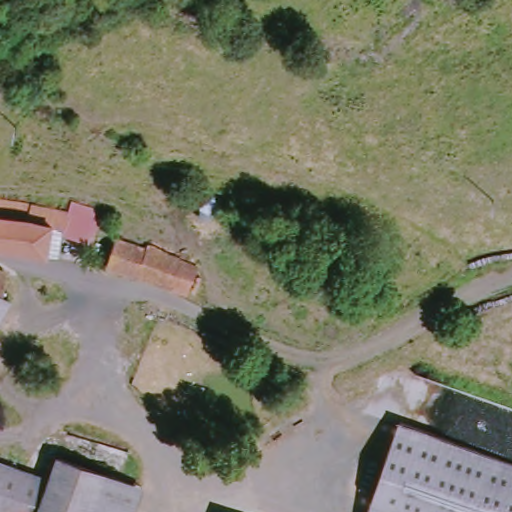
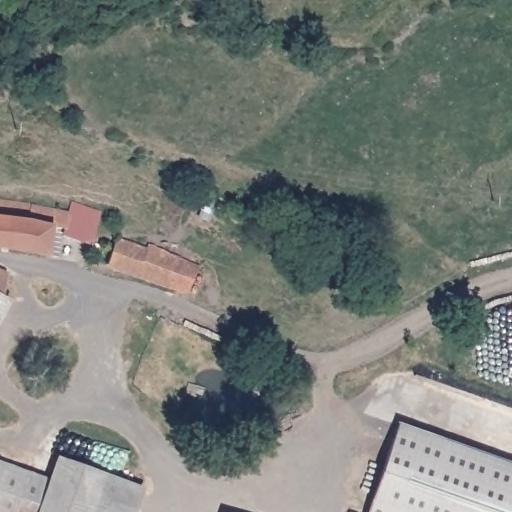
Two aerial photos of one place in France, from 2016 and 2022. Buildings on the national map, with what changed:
unchanged [(67,241),(69,234),(57,229),(48,258),(0,250),(0,222),(8,200),(34,207),(73,217),(79,206),(103,218),(92,247),(67,241)]
unchanged [(115,267),(122,246),(148,257),(152,244),(207,270),(196,297),(115,267)]
unchanged [(12,299),(17,303),(0,339),(0,271),(10,275),(12,299)]
unchanged [(365,512),(396,422),(512,463),(512,512),(365,512)]
unchanged [(55,478),(43,512),(0,512),(0,460),(23,469),(55,478)]
unchanged [(62,460),(146,491),(139,512),(43,512),(55,478),(62,460)]

